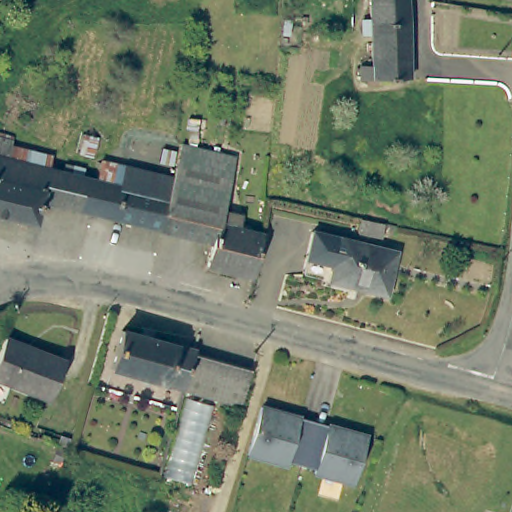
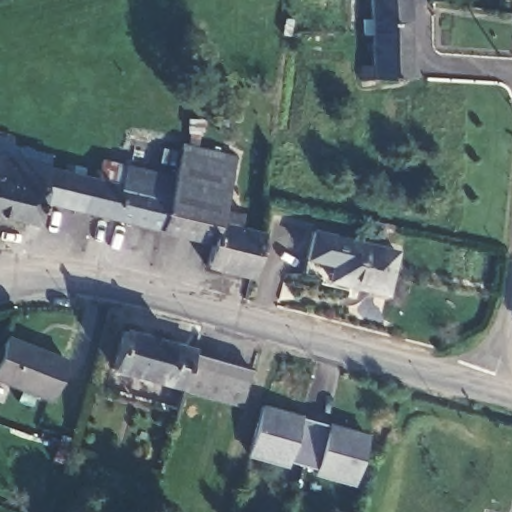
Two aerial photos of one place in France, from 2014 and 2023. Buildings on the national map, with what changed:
unchanged [(411,10),(412,74),(390,76),(363,76),(363,62),(374,62),(372,0),(411,0),(411,10)]
unchanged [(0,212),(0,133),(2,133),(7,134),(5,142),(4,154),(42,164),(37,184),(40,185),(37,199),(31,220),(0,212)]
unchanged [(179,138),(231,150),(219,203),(236,207),(234,219),(261,225),(251,270),(205,259),(211,237),(160,225),(172,171),(169,171),(179,138)]
unchanged [(169,171),(172,171),(160,225),(108,214),(115,181),(120,160),(169,171)]
unchanged [(108,214),(37,199),(40,185),(37,184),(42,164),(105,179),(115,181),(108,214)]
unchanged [(361,219),(383,225),(380,238),(358,232),(361,219)]
unchanged [(393,253),(383,294),(302,271),(314,231),(393,253)]
unchanged [(177,385),(104,364),(114,326),(189,348),(177,385)]
unchanged [(4,333),(64,355),(50,396),(0,378),(0,344),(4,333)]
unchanged [(236,402),(213,396),(177,385),(189,348),(246,365),(236,402)]
demolished [(210,408),(186,485),(160,476),(185,399),(210,408)]
unchanged [(261,407),(366,435),(352,484),(315,473),(315,469),(287,461),(286,466),(249,456),(261,407)]

